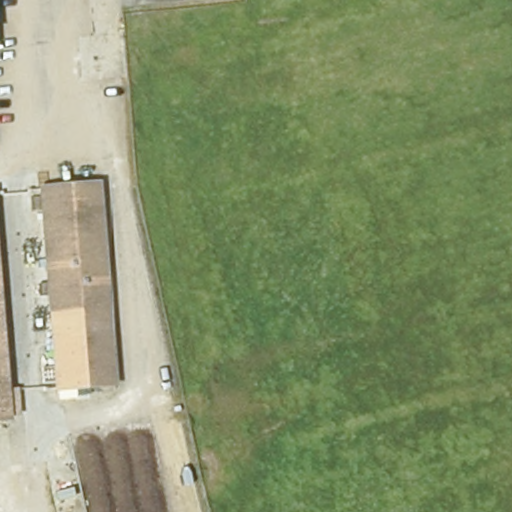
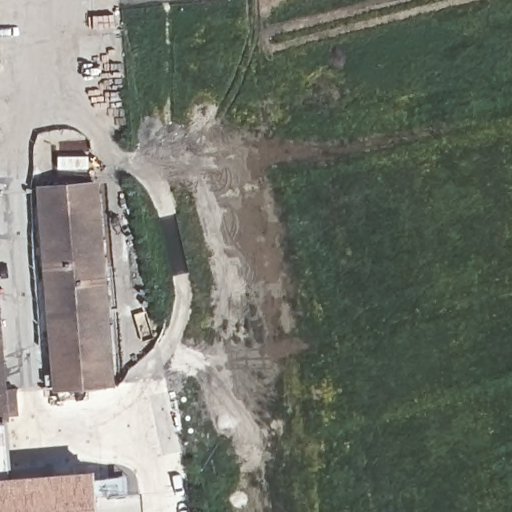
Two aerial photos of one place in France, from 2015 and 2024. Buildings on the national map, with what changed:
unchanged [(0,102),(1,102),(1,114),(0,115),(0,102)]
unchanged [(114,386),(56,391),(46,188),(101,183),(114,386)]
unchanged [(0,420),(0,196),(7,420),(0,420)]
new [(14,475),(96,469),(99,512),(0,512),(0,420),(7,420),(14,475)]

